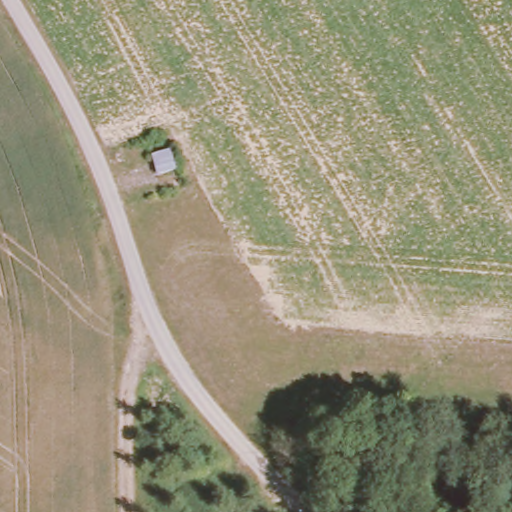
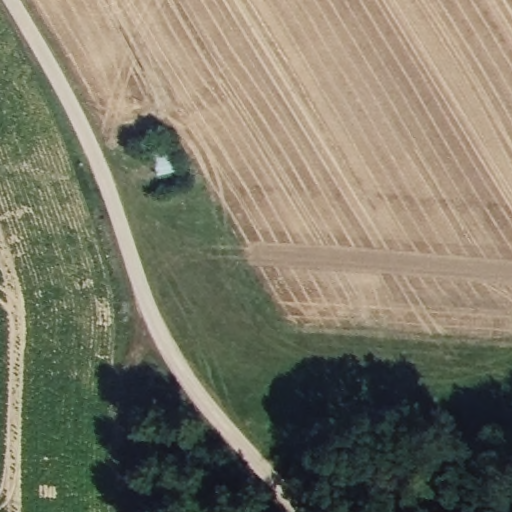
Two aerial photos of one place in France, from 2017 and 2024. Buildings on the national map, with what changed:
unchanged [(172,148),(179,167),(159,174),(152,154),(172,148)]

